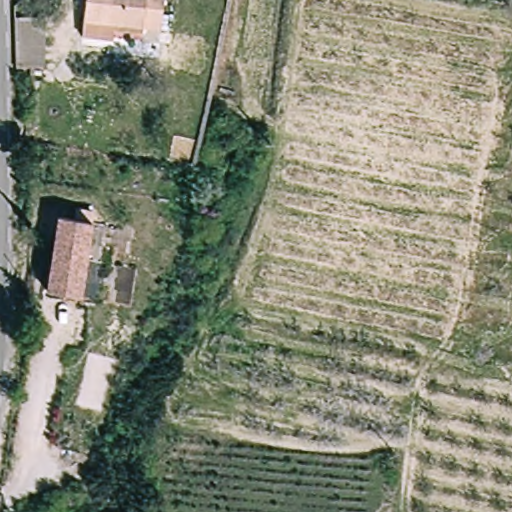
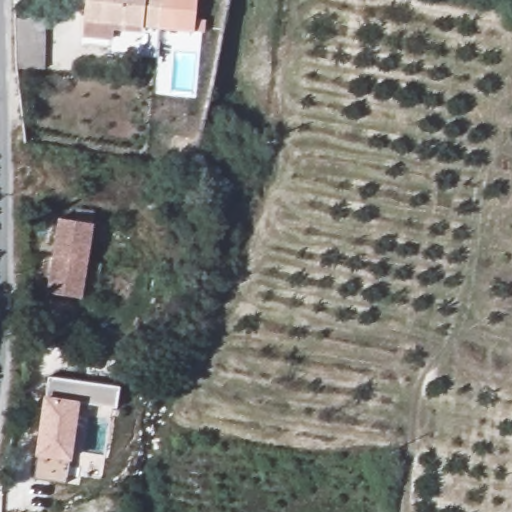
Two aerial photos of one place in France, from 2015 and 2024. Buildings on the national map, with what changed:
unchanged [(159,29),(115,26),(113,41),(83,38),(86,0),(162,0),(159,29)]
new [(196,16),(206,18),(205,31),(194,30),(194,32),(159,29),(162,0),(197,0),(196,16)]
unchanged [(23,74),(20,27),(27,27),(48,28),(48,77),(33,77),(23,77),(23,74)]
unchanged [(50,254),(56,217),(71,220),(73,210),(90,213),(89,222),(83,260),(50,254)]
unchanged [(77,297),(44,291),(50,254),(83,260),(77,297)]
new [(46,395),(48,376),(119,386),(116,406),(80,401),(72,460),(69,460),(66,481),(35,477),(38,455),(34,454),(43,396),(46,395)]

